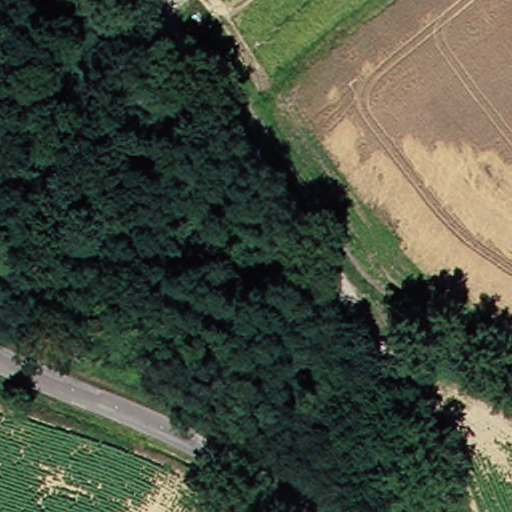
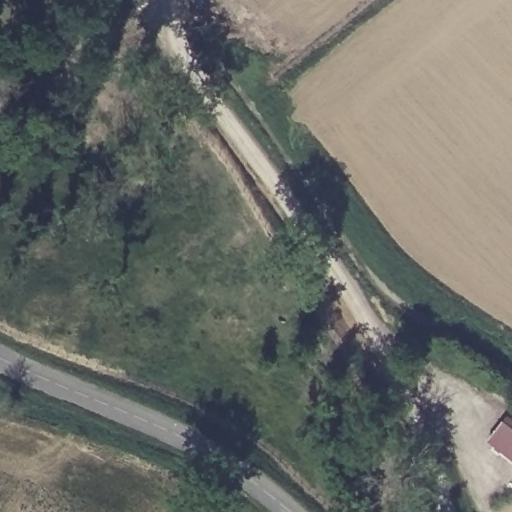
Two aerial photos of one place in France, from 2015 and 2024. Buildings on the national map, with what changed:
new [(489,441),(504,420),(512,426),(512,457),(489,441)]

